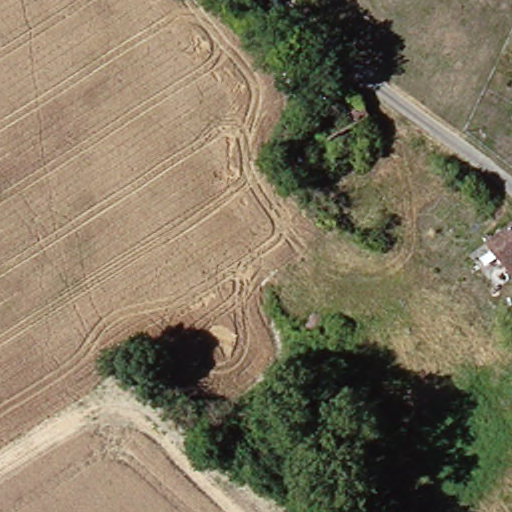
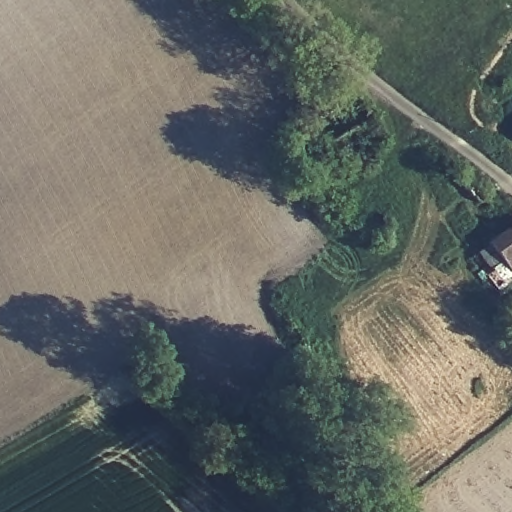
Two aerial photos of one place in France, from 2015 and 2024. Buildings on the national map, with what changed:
unchanged [(483,246),(512,224),(512,274),(507,277),(483,246)]

